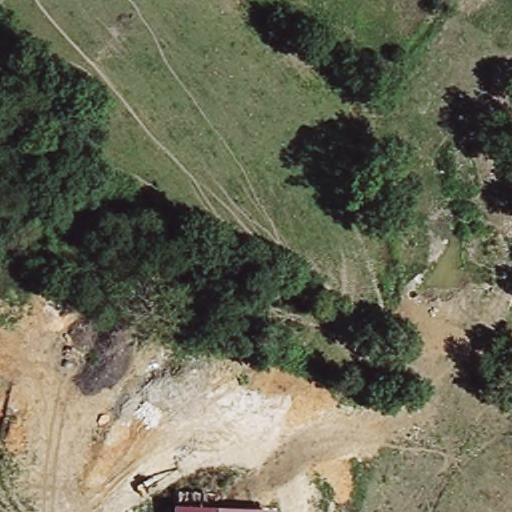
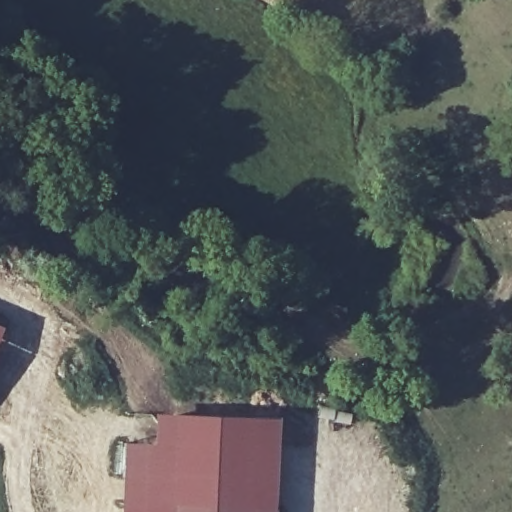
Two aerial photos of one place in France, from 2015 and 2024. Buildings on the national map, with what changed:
new [(0,333),(0,328),(2,328),(0,333)]
new [(173,512),(122,512),(125,442),(155,444),(156,413),(280,419),(276,510),(173,506),(173,512)]
unchanged [(275,512),(173,512),(173,506),(276,510),(275,512)]

